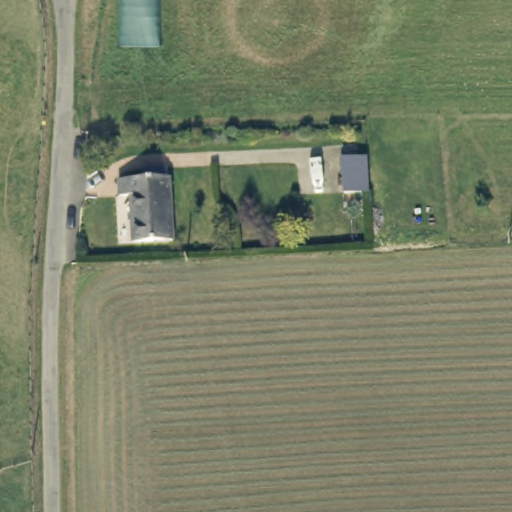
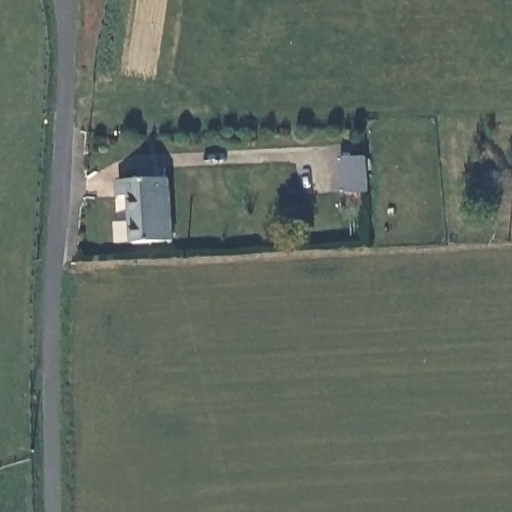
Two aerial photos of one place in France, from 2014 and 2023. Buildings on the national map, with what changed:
demolished [(123,44),(120,0),(158,0),(158,45),(123,44)]
unchanged [(336,197),(335,162),(361,160),(361,195),(336,197)]
unchanged [(176,241),(138,243),(136,197),(124,197),(123,182),(173,179),(176,241)]

